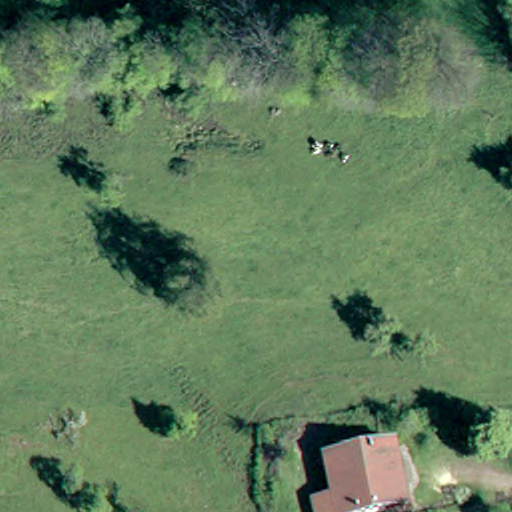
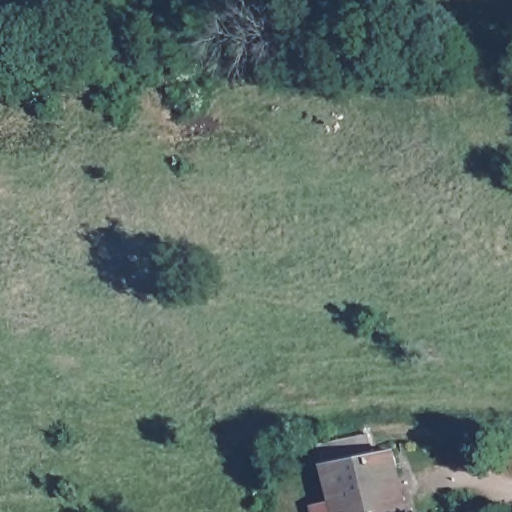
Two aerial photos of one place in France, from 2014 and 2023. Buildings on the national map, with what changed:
unchanged [(406,511),(401,512),(334,512),(325,465),(397,450),(406,511)]

